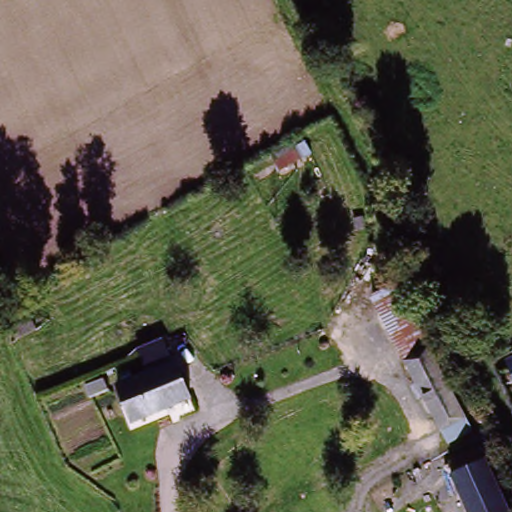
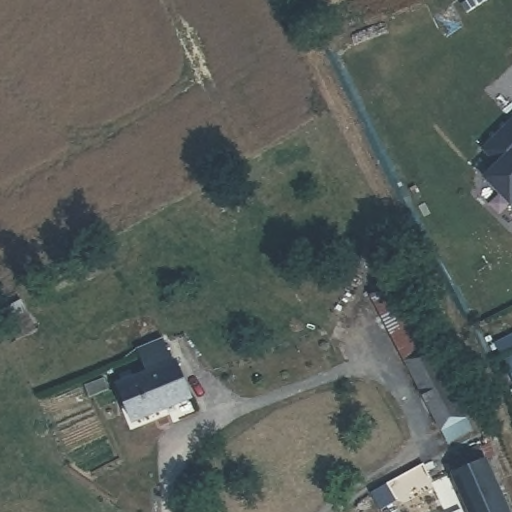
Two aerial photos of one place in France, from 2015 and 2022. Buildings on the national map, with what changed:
new [(484,179),(500,163),(482,149),(512,118),(512,207),(511,207),(484,179)]
unchanged [(371,311),(395,297),(423,347),(400,360),(371,311)]
unchanged [(447,441),(438,426),(400,360),(423,347),(461,412),(470,428),(447,441)]
unchanged [(120,395),(114,380),(173,359),(179,374),(120,395)]
unchanged [(501,365),(512,359),(512,376),(507,378),(501,365)]
unchanged [(185,392),(192,411),(133,430),(120,395),(179,374),(187,372),(193,390),(185,392)]
unchanged [(452,474),(490,456),(496,468),(489,472),(504,502),(509,512),(471,512),(452,474)]

